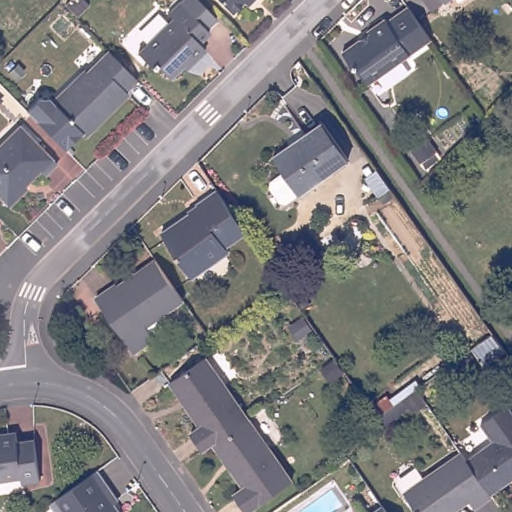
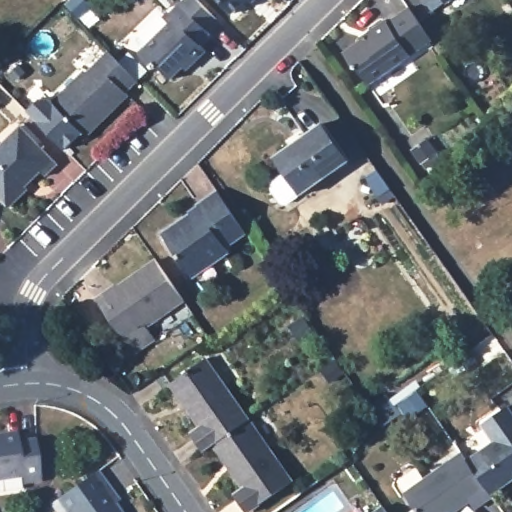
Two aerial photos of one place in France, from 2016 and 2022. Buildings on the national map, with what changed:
unchanged [(204,34),(207,37),(198,47),(204,54),(191,67),(188,65),(168,83),(154,69),(151,72),(137,57),(172,23),(167,19),(186,0),(192,0),(215,23),(204,34)]
unchanged [(223,0),(253,0),(237,15),(223,0)]
unchanged [(449,0),(438,7),(433,0),(449,0)]
unchanged [(435,40),(373,85),(361,68),(358,68),(348,54),(374,35),(373,32),(389,21),(392,25),(413,9),(435,40)]
unchanged [(82,71),(86,75),(108,52),(131,76),(136,80),(124,92),(126,94),(114,107),(110,103),(103,110),(107,114),(84,136),(80,132),(64,149),(62,147),(26,111),(38,99),(48,99),(51,102),(82,71)]
unchanged [(296,199),(290,199),(279,183),(280,177),(293,168),(283,153),(309,135),(331,119),(358,156),(309,190),(296,199)]
unchanged [(13,206),(11,205),(0,193),(0,147),(23,125),(57,158),(62,163),(49,176),(44,171),(34,181),(32,179),(27,185),(29,187),(30,188),(13,206)]
unchanged [(255,232),(233,248),(236,253),(200,278),(169,234),(198,213),(201,217),(208,211),(204,206),(225,190),(255,232)]
unchanged [(193,302),(157,327),(165,339),(143,355),(105,300),(120,290),(121,292),(165,261),(193,302)]
unchanged [(194,432),(204,426),(191,407),(194,404),(190,397),(186,400),(175,384),(210,358),(253,420),(218,445),(208,452),(194,432)]
unchanged [(497,441),(485,424),(511,407),(512,408),(512,481),(512,485),(496,496),(478,508),(473,502),(458,512),(422,512),(409,494),(467,454),(471,460),(488,447),(497,441)]
unchanged [(253,420),(296,481),(253,512),(252,512),(238,494),(248,487),(235,468),(238,466),(233,458),(229,461),(218,445),(253,420)]
unchanged [(16,431),(18,441),(33,438),(40,479),(24,482),(23,475),(0,479),(0,434),(16,431)]
unchanged [(104,470),(124,498),(118,503),(125,512),(65,512),(58,502),(104,470)]
unchanged [(386,512),(376,512),(383,507),(386,512)]

